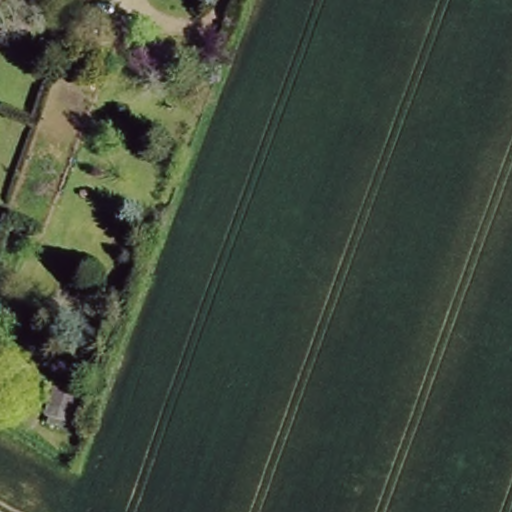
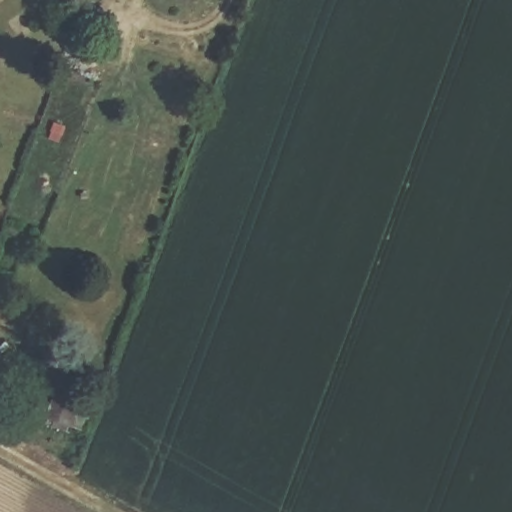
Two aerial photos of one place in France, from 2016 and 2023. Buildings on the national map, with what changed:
unchanged [(87,391),(77,417),(56,409),(65,383),(87,391)]

